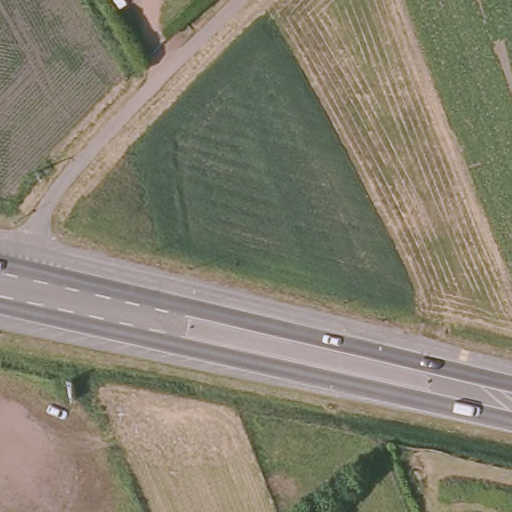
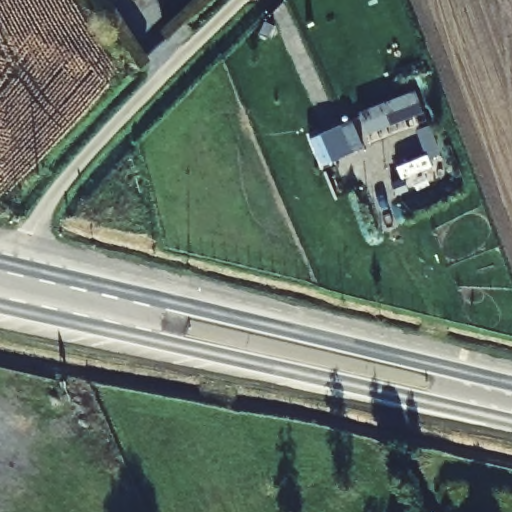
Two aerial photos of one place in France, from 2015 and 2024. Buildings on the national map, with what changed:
new [(423,112),(366,134),(358,112),(414,90),(423,112)]
new [(363,147),(321,166),(308,139),(350,120),(363,147)]

